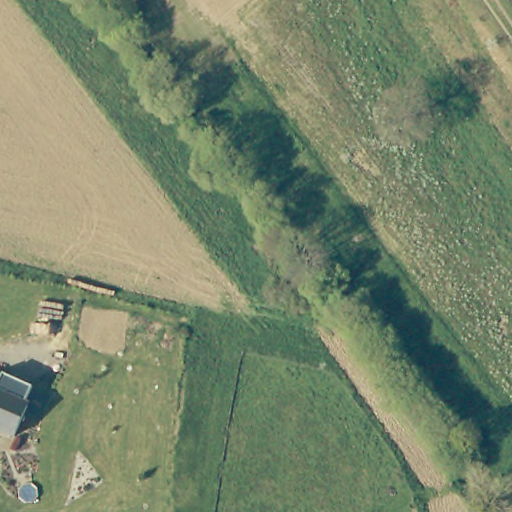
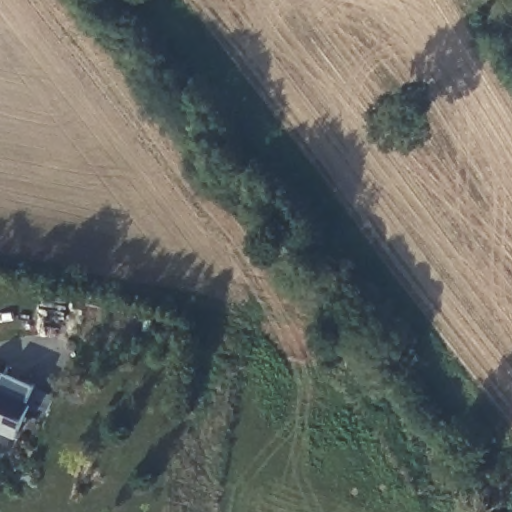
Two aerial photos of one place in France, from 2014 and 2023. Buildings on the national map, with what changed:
unchanged [(0,430),(0,383),(4,374),(34,387),(25,405),(29,406),(15,437),(0,430)]

